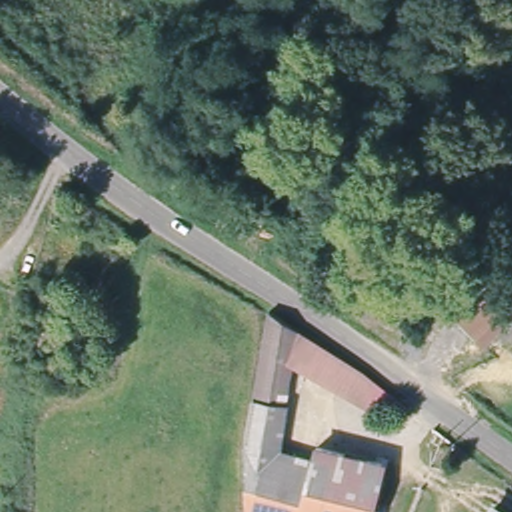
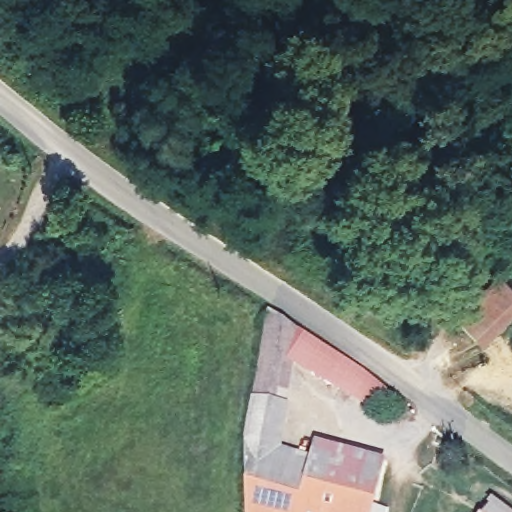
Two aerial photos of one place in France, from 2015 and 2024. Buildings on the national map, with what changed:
unchanged [(486,336),(464,320),(500,277),(512,289),(512,306),(486,336)]
unchanged [(300,326),(397,394),(385,418),(300,371),(283,449),(313,460),(300,512),(244,512),(240,442),(268,307),(300,326)]
unchanged [(313,460),(320,436),(383,455),(371,512),(300,512),(313,460)]
unchanged [(511,512),(486,512),(495,499),(511,512)]

